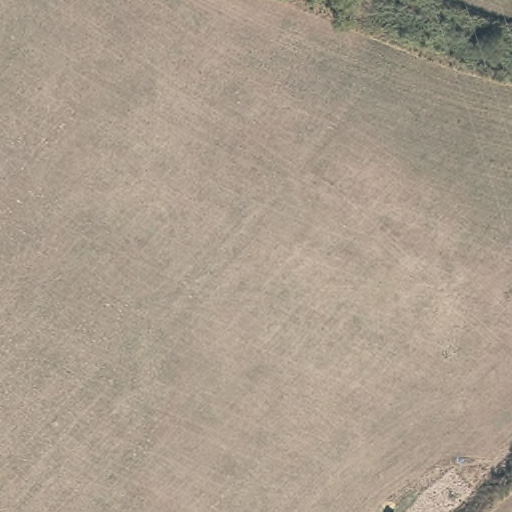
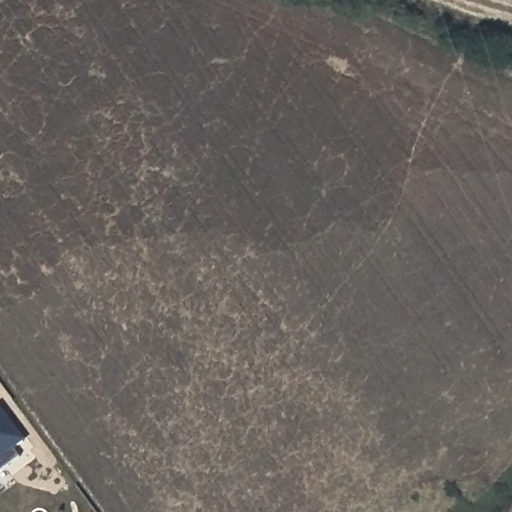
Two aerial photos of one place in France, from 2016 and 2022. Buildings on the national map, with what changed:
new [(25,440),(15,447),(22,456),(0,472),(0,406),(25,440)]

